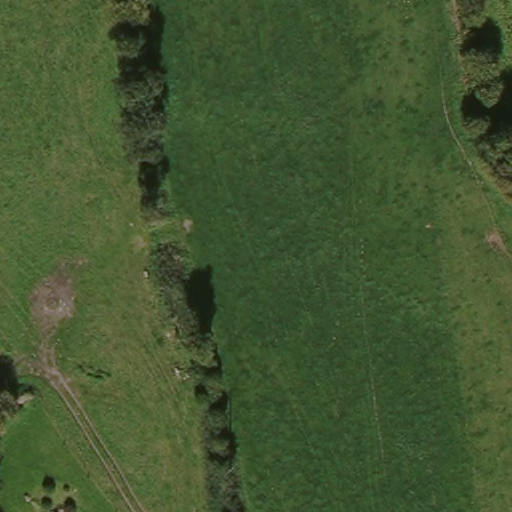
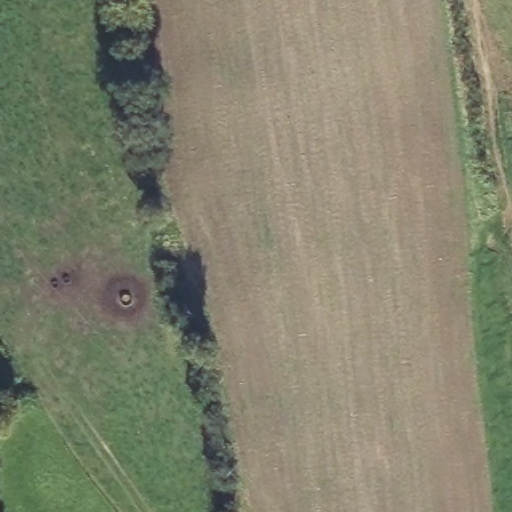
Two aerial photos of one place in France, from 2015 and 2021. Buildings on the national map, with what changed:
[]

